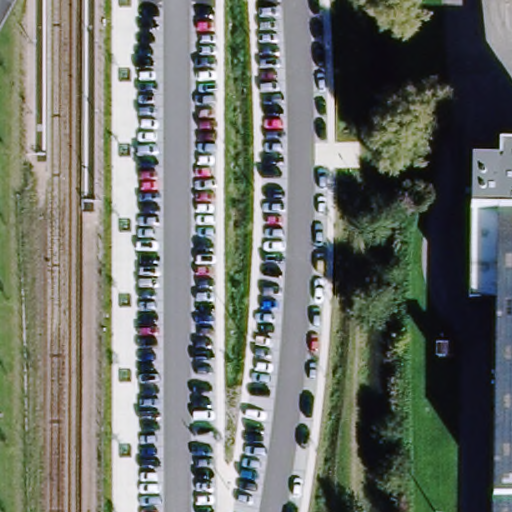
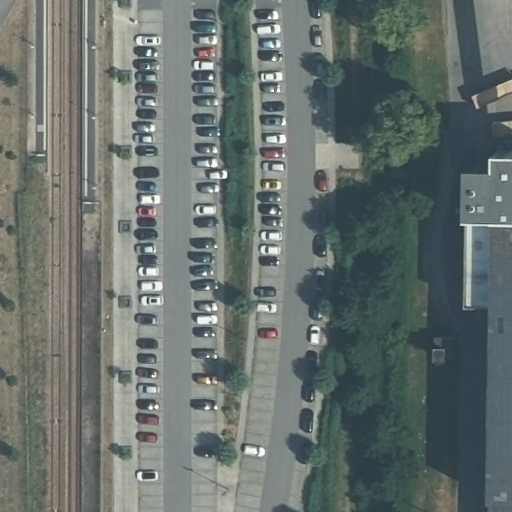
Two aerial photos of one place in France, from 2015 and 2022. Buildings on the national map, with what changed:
unchanged [(491,289),(492,243),(493,160),(512,160),(512,512),(487,512),(491,289)]
unchanged [(466,289),(466,242),(492,243),(491,289),(466,289)]
unchanged [(455,345),(455,355),(439,355),(439,322),(454,321),(455,339),(459,339),(459,345),(455,345)]

